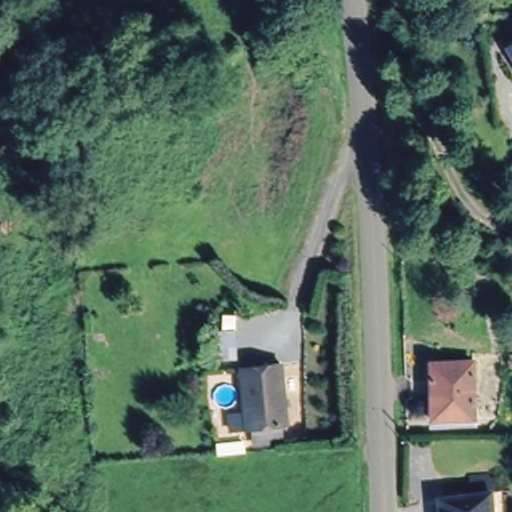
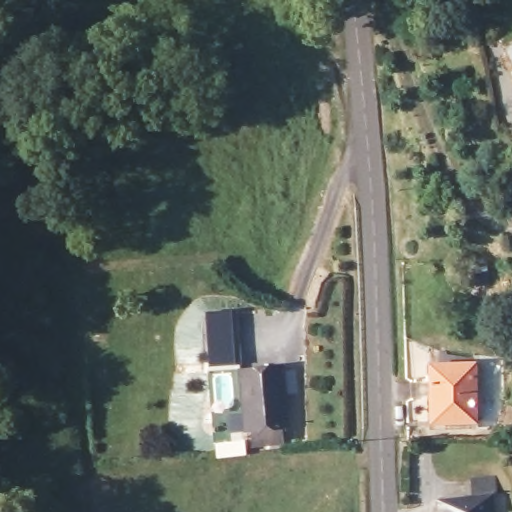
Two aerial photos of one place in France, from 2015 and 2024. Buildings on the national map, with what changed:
unchanged [(510,67),(498,47),(512,39),(512,66),(510,67)]
new [(237,308),(241,361),(210,365),(206,311),(237,308)]
unchanged [(249,445),(248,430),(239,431),(239,411),(235,365),(279,365),(283,429),(274,428),(276,443),(249,445)]
unchanged [(473,425),(433,422),(434,366),(475,367),(473,425)]
unchanged [(469,500),(467,483),(495,482),(495,499),(487,500),(489,512),(458,512),(458,500),(469,500)]
unchanged [(458,512),(436,512),(435,501),(458,500),(458,512)]

